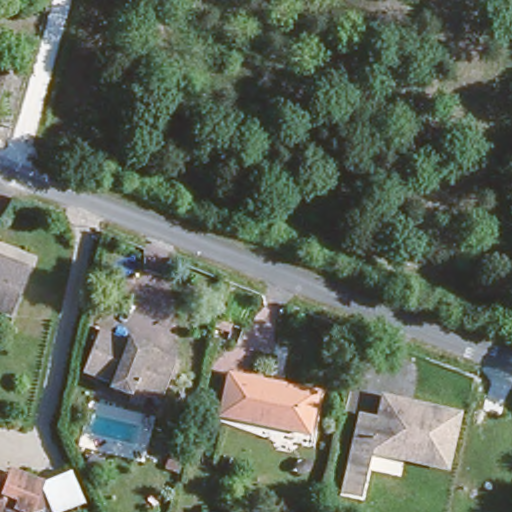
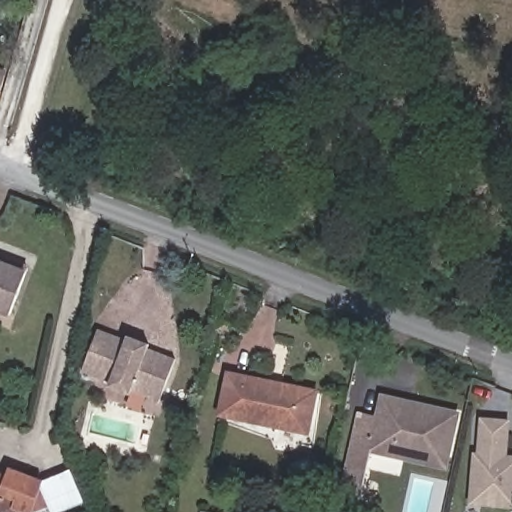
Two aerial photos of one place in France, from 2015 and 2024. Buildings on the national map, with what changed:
unchanged [(5,62),(0,82),(0,60),(5,62)]
unchanged [(0,302),(0,253),(29,265),(11,307),(0,302)]
unchanged [(230,321),(216,318),(219,308),(233,312),(230,321)]
unchanged [(97,325),(125,334),(126,332),(147,339),(145,344),(171,353),(154,396),(128,387),(127,390),(107,383),(111,372),(83,361),(97,325)]
unchanged [(229,373),(318,394),(308,435),(219,414),(229,373)]
unchanged [(450,470),(373,453),(363,500),(342,497),(359,415),(378,417),(383,399),(460,414),(450,470)]
new [(473,453),(477,453),(479,418),(509,421),(507,455),(512,455),(512,509),(468,506),(473,453)]
unchanged [(39,474),(72,463),(84,492),(53,504),(39,474)]
unchanged [(6,475),(7,468),(23,471),(38,474),(29,512),(0,512),(0,474),(6,475)]

